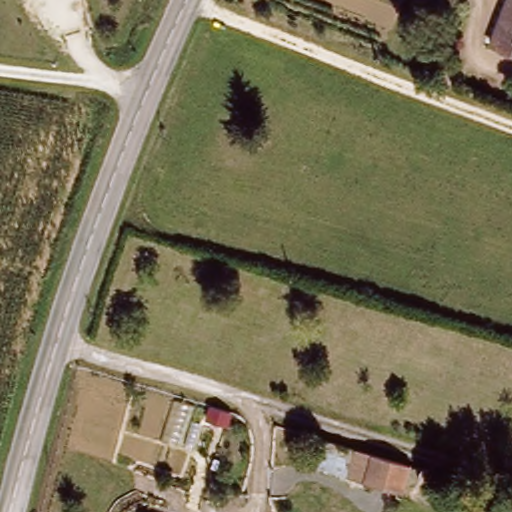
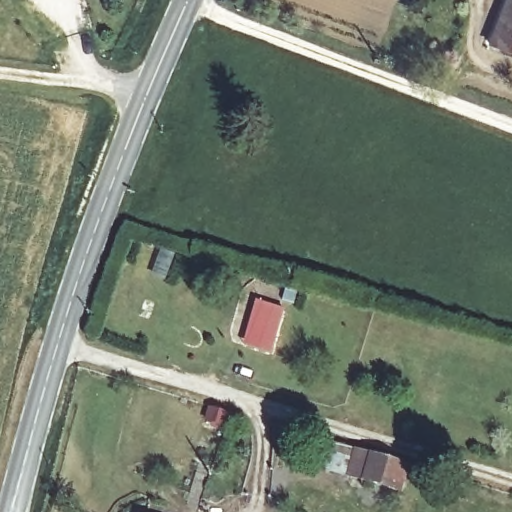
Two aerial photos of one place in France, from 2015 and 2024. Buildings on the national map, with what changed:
unchanged [(487,58),(507,8),(510,0),(512,0),(512,66),(487,58)]
new [(285,310),(272,353),(245,345),(257,301),(285,310)]
unchanged [(410,463),(400,491),(350,470),(356,446),(410,463)]

